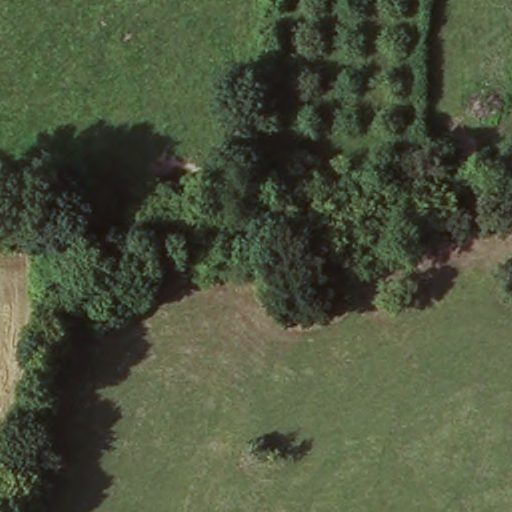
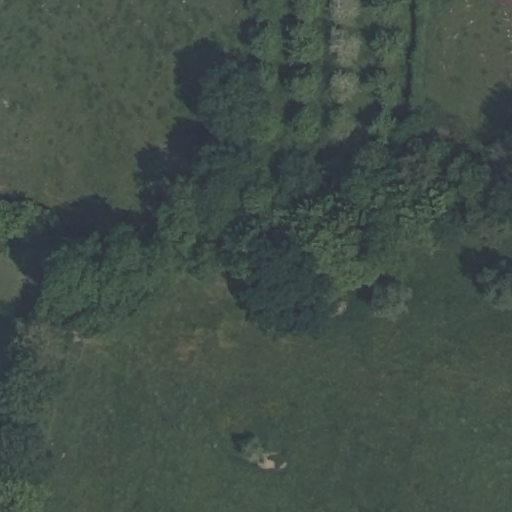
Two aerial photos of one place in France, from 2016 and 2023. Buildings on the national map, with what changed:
[]

